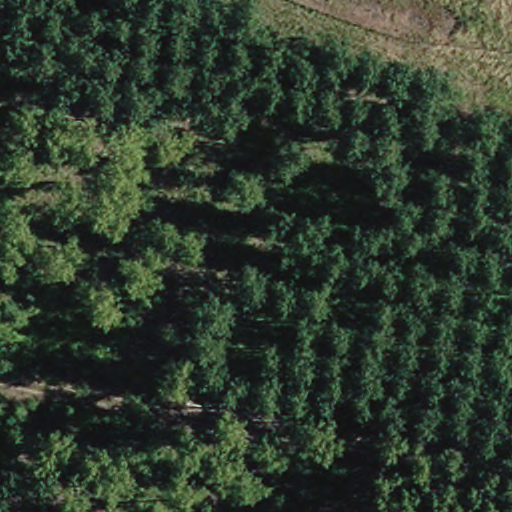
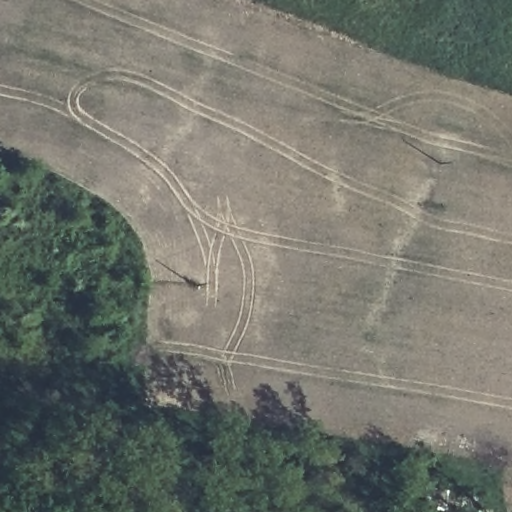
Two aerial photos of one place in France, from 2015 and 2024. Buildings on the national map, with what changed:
[]

